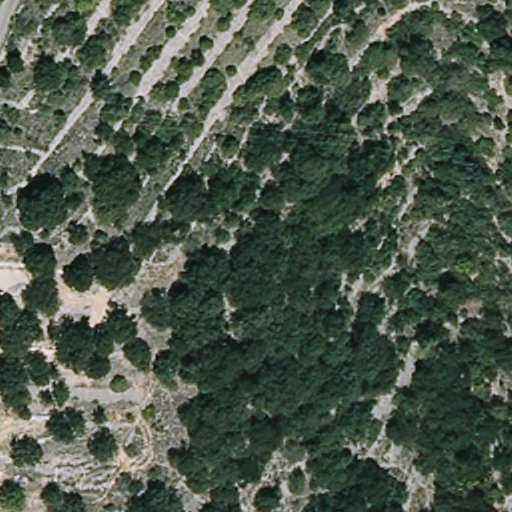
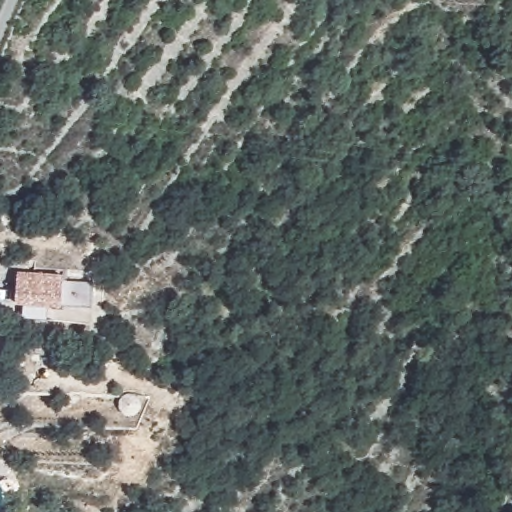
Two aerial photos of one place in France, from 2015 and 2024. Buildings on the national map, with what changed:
new [(94,283),(92,309),(16,304),(18,277),(94,283)]

